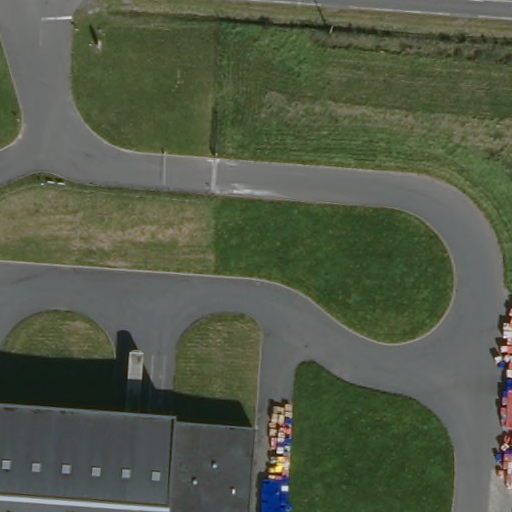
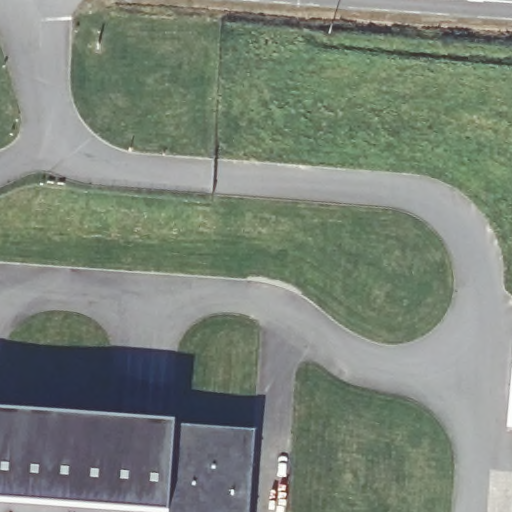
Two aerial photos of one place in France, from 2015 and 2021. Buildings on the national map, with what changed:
unchanged [(256,439),(250,512),(0,512),(0,420),(176,431),(256,439)]

